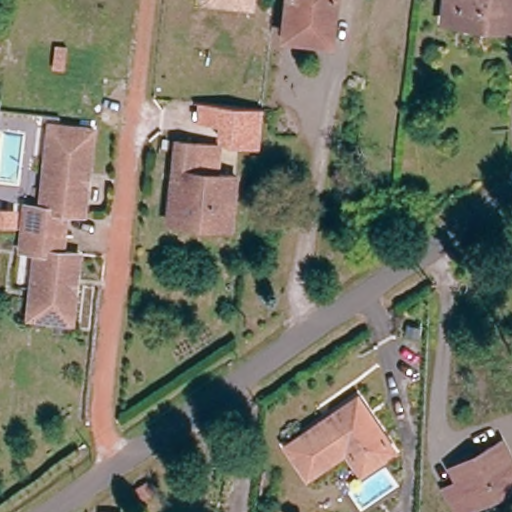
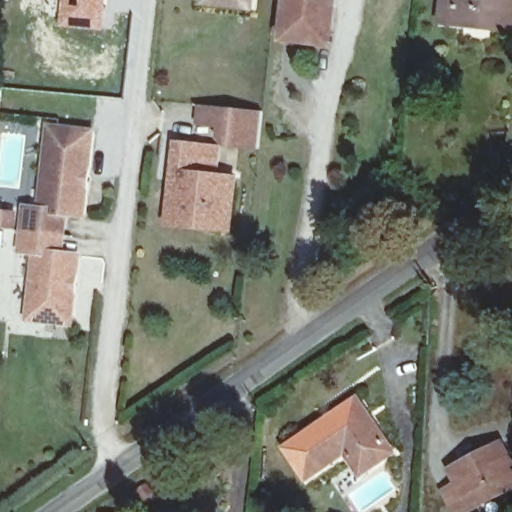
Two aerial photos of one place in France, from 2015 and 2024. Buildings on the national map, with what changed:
new [(105,32),(61,27),(64,0),(108,0),(105,32)]
unchanged [(251,14),(202,8),(202,0),(252,0),(251,14)]
unchanged [(285,24),(288,0),(332,0),(328,40),(304,37),(284,34),(285,24)]
unchanged [(444,0),(512,0),(512,24),(442,17),(444,0)]
unchanged [(259,152),(229,148),(232,117),(263,121),(259,152)]
unchanged [(14,322),(23,256),(9,254),(14,210),(29,211),(42,129),(84,136),(73,219),(55,217),(48,257),(67,260),(57,328),(14,322)]
unchanged [(166,222),(175,149),(192,151),(215,154),(212,181),(233,184),(227,236),(206,234),(165,229),(166,222)]
unchanged [(349,457),(345,451),(307,476),(287,446),(363,397),(396,452),(374,467),(361,475),(349,457)]
unchanged [(461,486),(456,477),(453,470),(484,454),(501,444),(512,463),(512,490),(475,511),(474,512),(456,512),(446,495),(461,486)]

